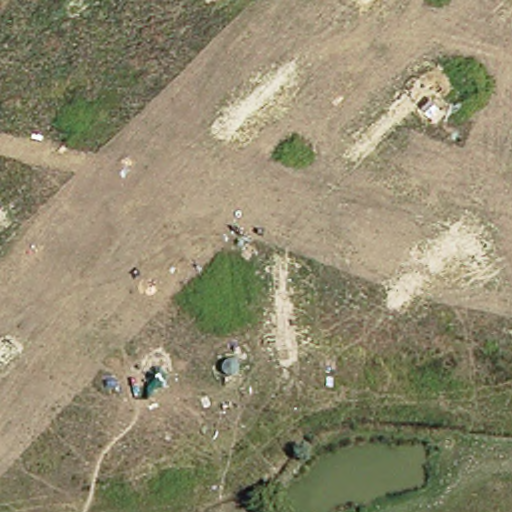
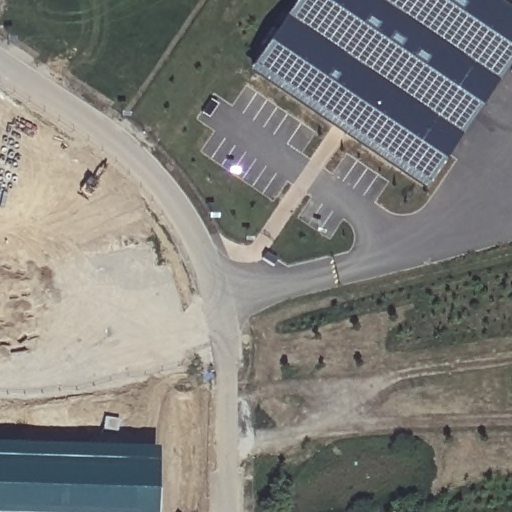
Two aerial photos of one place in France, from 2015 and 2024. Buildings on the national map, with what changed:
new [(495,0),(512,11),(512,63),(432,183),(258,66),(302,0),(495,0)]
new [(155,512),(0,512),(0,445),(156,450),(155,512)]

